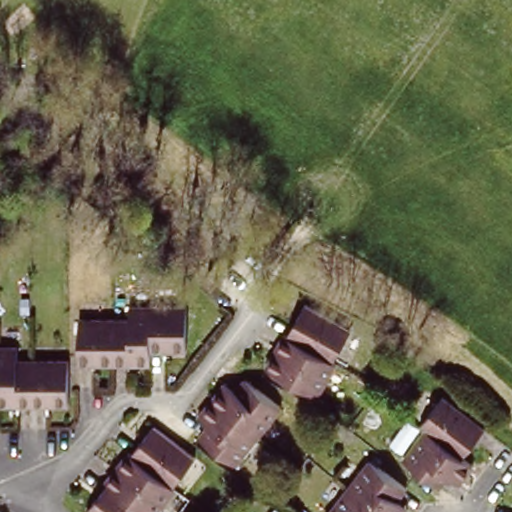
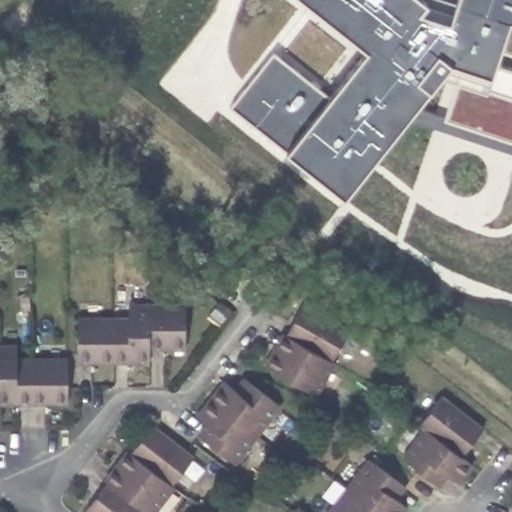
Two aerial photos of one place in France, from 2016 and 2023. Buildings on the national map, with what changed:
new [(301,0),(446,0),(449,2),(450,0),(512,0),(512,97),(444,81),(359,216),(265,147),(342,39),(301,0)]
unchanged [(349,325),(331,357),(334,358),(315,390),(264,360),(272,346),(283,328),(286,330),(304,298),(349,325)]
unchanged [(156,365),(118,365),(85,365),(84,321),(118,321),(134,321),(135,307),(156,308),(191,308),(192,351),(156,351),(156,365)]
unchanged [(0,350),(3,350),(24,350),(24,362),(39,362),(75,363),(75,407),(39,407),(3,407),(3,394),(0,394),(0,350)]
unchanged [(259,435),(234,463),(201,435),(213,420),(203,411),(213,397),(222,386),(233,395),(247,378),(281,406),(259,435)]
unchanged [(450,475),(442,486),(406,458),(428,430),(422,425),(444,395),(487,429),(464,458),(473,465),(464,477),(459,483),(450,475)]
unchanged [(136,452),(159,425),(201,460),(178,485),(181,488),(160,512),(94,512),(90,510),(113,483),(109,480),(123,464),(134,450),(136,452)]
unchanged [(349,488),(371,461),(407,490),(397,502),(408,510),(406,512),(329,512),(349,488)]

